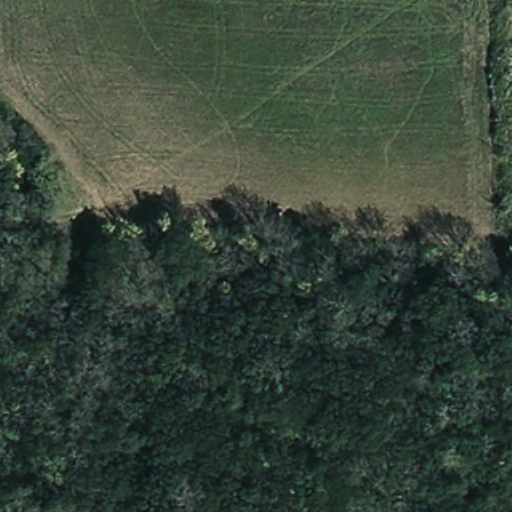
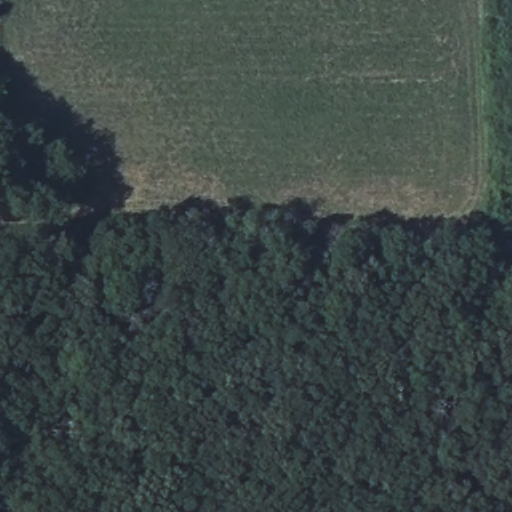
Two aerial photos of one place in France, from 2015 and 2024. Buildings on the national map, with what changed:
[]

